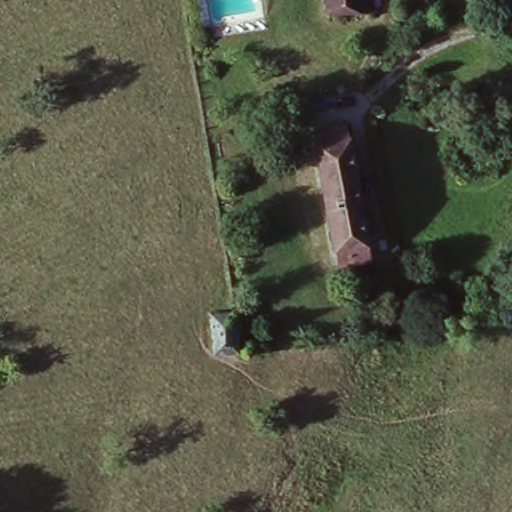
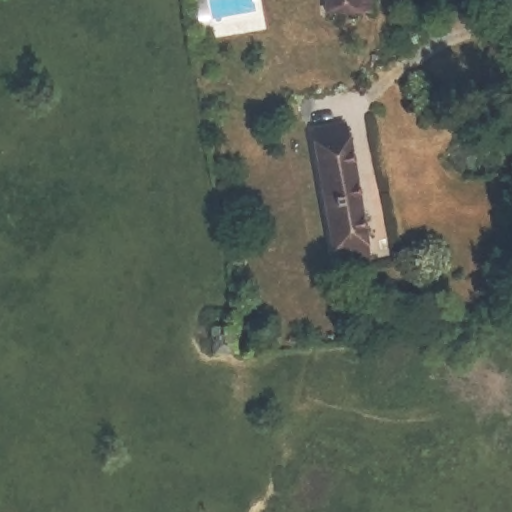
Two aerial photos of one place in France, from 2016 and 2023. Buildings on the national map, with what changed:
unchanged [(328,15),(328,0),(368,0),(367,15),(328,15)]
unchanged [(339,136),(363,268),(334,273),(310,141),(339,136)]
unchanged [(212,357),(209,320),(232,320),(236,357),(212,357)]

